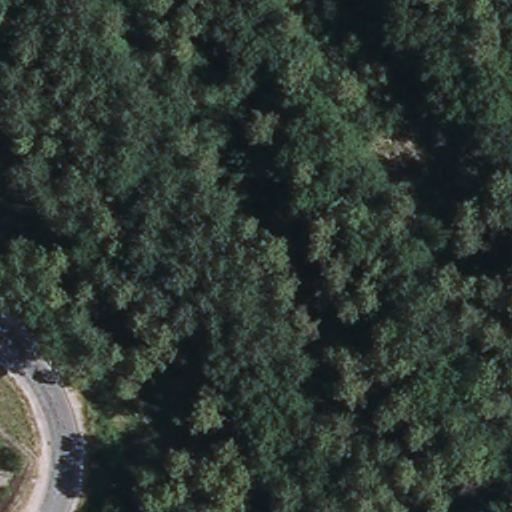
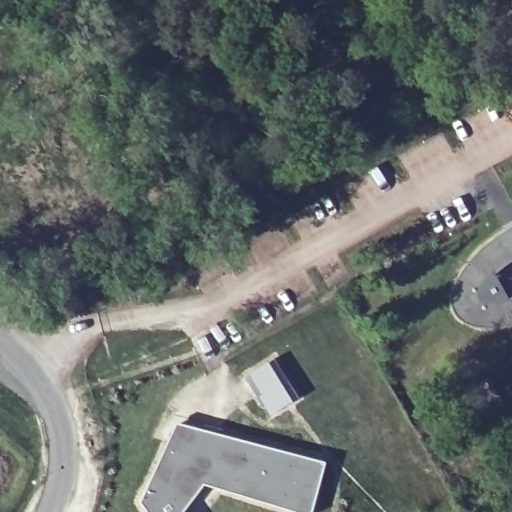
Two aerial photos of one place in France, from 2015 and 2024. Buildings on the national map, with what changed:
new [(512,74),(512,75),(511,74),(512,74)]
new [(467,323),(456,316),(451,306),(451,293),(458,274),(470,259),(487,243),(502,232),(512,227),(512,260),(493,273),(508,299),(512,298),(512,326),(501,328),(481,328),(467,323)]
new [(277,357),(301,396),(273,413),(272,414),(247,375),(251,373),(277,357)]
new [(222,434),(319,459),(326,461),(318,492),(313,512),(297,512),(205,484),(184,510),(185,512),(148,512),(140,502),(171,435),(177,422),(181,423),(208,430),(222,434)]

